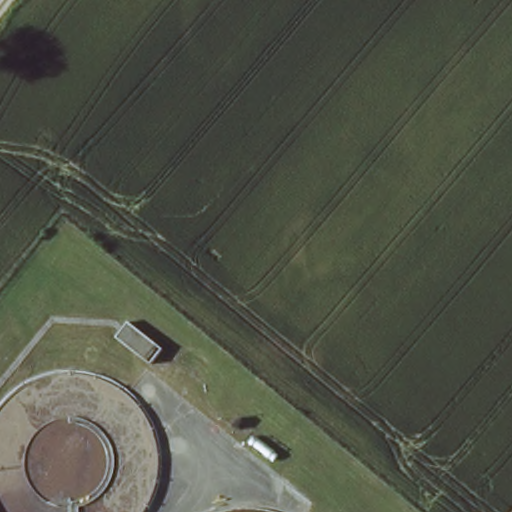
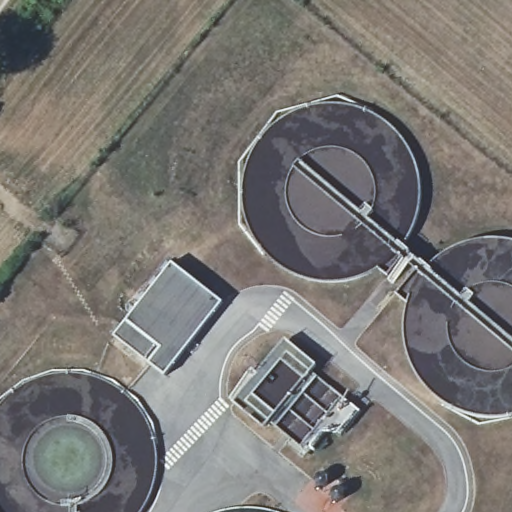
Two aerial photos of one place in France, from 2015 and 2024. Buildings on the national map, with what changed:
new [(173,262),(223,302),(165,375),(115,337),(173,262)]
new [(243,382),(254,375),(287,337),(320,365),(315,371),(347,398),(348,402),(304,446),(272,423),(266,429),(230,400),(243,382)]

